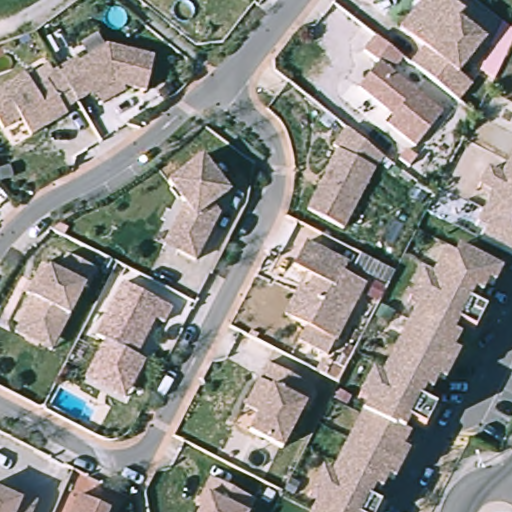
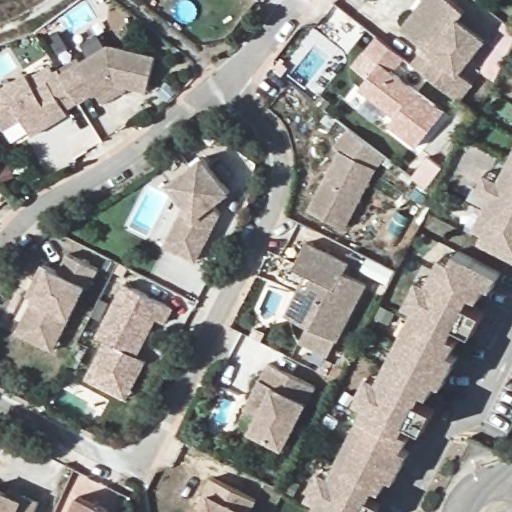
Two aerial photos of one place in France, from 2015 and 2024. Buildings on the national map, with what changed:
unchanged [(410,36),(400,28),(421,0),(450,0),(464,10),(458,18),(484,39),(479,45),(458,72),(471,83),(457,100),(417,68),(411,63),(424,47),(410,36)]
unchanged [(403,57),(391,72),(442,112),(415,146),(387,124),(393,116),(358,88),(378,62),(363,51),(375,35),(403,57)]
unchanged [(60,74),(108,45),(155,57),(145,91),(114,82),(92,95),(91,93),(77,101),(60,74)]
unchanged [(54,121),(31,135),(20,118),(2,129),(0,126),(0,89),(25,73),(34,89),(46,82),(44,77),(57,69),(58,69),(60,74),(77,101),(64,109),(67,113),(54,121)]
unchanged [(383,156),(374,168),(344,228),(308,210),(338,149),(333,145),(347,128),(383,156)]
unchanged [(482,210),(490,195),(477,188),(486,171),(499,178),(507,163),(512,153),(512,256),(478,239),(483,230),(477,227),(474,226),(477,221),(482,210)]
unchanged [(171,230),(184,204),(168,182),(201,156),(228,191),(212,204),(219,213),(195,260),(177,251),(164,244),(171,230)]
unchanged [(300,285),(307,288),(313,277),(292,266),(305,242),(347,263),(343,272),(364,283),(335,340),(291,318),(285,315),(300,285)]
unchanged [(407,302),(420,276),(429,280),(435,269),(443,254),(451,259),(456,250),(477,260),(499,272),(491,286),(485,283),(478,296),(477,295),(471,292),(466,302),(477,308),(479,309),(477,314),(468,331),(455,324),(450,334),(457,338),(450,351),(457,354),(449,368),(407,346),(411,337),(402,333),(410,318),(416,307),(407,302)]
unchanged [(15,331),(23,316),(33,297),(26,293),(33,281),(42,263),(57,271),(66,253),(96,269),(87,287),(84,286),(59,334),(51,349),(15,331)]
unchanged [(86,377),(90,368),(105,340),(96,335),(123,282),(171,307),(163,322),(154,317),(135,354),(144,359),(129,388),(125,397),(86,377)]
unchanged [(357,399),(371,372),(380,377),(385,366),(392,353),(393,351),(402,355),(407,346),(449,368),(442,383),(436,379),(429,393),(421,389),(416,399),(430,406),(419,427),(405,420),(400,430),(408,434),(401,447),(407,451),(400,465),(391,460),(375,452),(372,451),(357,443),(362,434),(353,430),(360,414),(366,403),(357,399)]
unchanged [(313,385),(282,446),(249,430),(258,413),(245,406),(259,379),(267,362),(313,385)]
unchanged [(308,495),(321,469),(330,474),(336,462),(344,447),(352,452),(357,443),(372,451),(375,452),(391,460),(400,465),(393,479),(390,478),(386,476),(379,489),(372,485),(366,496),(380,503),(376,512),(310,512),(311,511),(317,500),(308,495)]
unchanged [(203,492),(211,477),(254,499),(248,512),(198,512),(201,507),(196,505),(203,492)]
unchanged [(0,512),(0,491),(7,493),(9,489),(22,494),(37,501),(32,512),(0,512)]
unchanged [(109,509),(108,512),(69,512),(77,495),(109,509)]

